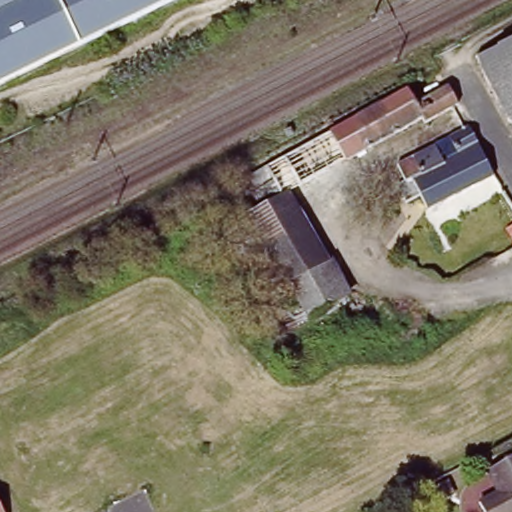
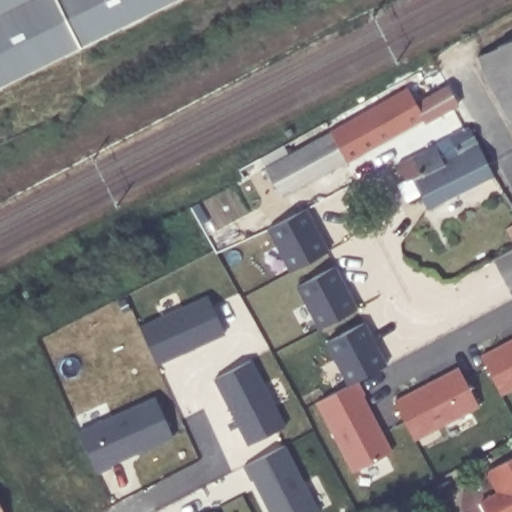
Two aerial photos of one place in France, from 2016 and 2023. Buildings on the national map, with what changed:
unchanged [(0,89),(0,0),(179,0),(0,89)]
unchanged [(510,123),(484,76),(476,57),(498,47),(497,45),(512,38),(512,122),(510,123)]
unchanged [(266,166),(408,89),(416,104),(448,85),(458,105),(425,123),(421,118),(284,193),(281,195),(260,206),(252,193),(245,178),(266,166)]
unchanged [(471,129),(494,176),(428,211),(420,196),(407,204),(397,186),(405,182),(401,175),(396,166),(411,158),(468,128),(471,129)]
demolished [(221,229),(260,206),(275,234),(237,257),(221,229)]
new [(290,271),(268,229),(305,209),(327,251),(290,271)]
unchanged [(508,228),(512,225),(512,235),(508,228)]
new [(319,330),(297,287),(335,267),(356,309),(319,330)]
new [(156,366),(139,325),(208,295),(226,335),(156,366)]
new [(365,323),(386,367),(358,379),(348,384),(326,342),(365,323)]
new [(501,394),(482,355),(512,338),(512,388),(501,394)]
new [(213,378),(251,357),(287,427),(249,447),(213,378)]
new [(414,440),(394,401),(459,367),(480,406),(414,440)]
new [(366,394),(364,395),(393,450),(351,472),(316,402),(348,384),(358,379),(366,394)]
new [(109,465),(110,468),(96,474),(78,431),(155,397),(173,436),(109,465)]
new [(270,512),(252,479),(250,480),(244,466),(286,444),(321,511),(319,512),(270,512)]
unchanged [(501,492),(490,470),(512,458),(512,512),(487,512),(481,502),(501,492)]
unchanged [(0,512),(0,502),(5,512),(0,512)]
new [(217,512),(212,512),(216,510),(217,512)]

